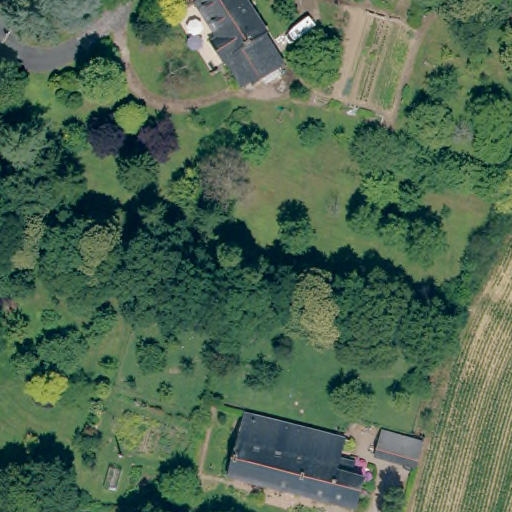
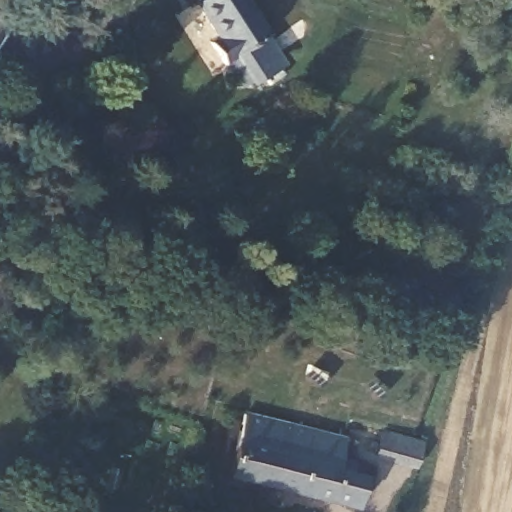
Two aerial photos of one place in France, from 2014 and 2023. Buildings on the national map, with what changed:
unchanged [(223,63),(214,47),(222,42),(201,3),(207,0),(248,0),(269,36),(265,39),(281,69),(254,87),(236,56),(223,63)]
unchanged [(227,468),(237,434),(247,408),(298,424),(291,445),(292,455),(309,463),(299,491),(227,468)]
unchanged [(336,460),(352,465),(349,473),(364,478),(354,509),(299,491),(309,463),(292,455),(291,445),(298,424),(343,439),(336,460)]
unchanged [(377,443),(378,440),(380,432),(423,444),(417,468),(408,466),(374,457),(377,443)]
unchanged [(166,491),(174,486),(186,484),(181,505),(164,503),(166,491)]

